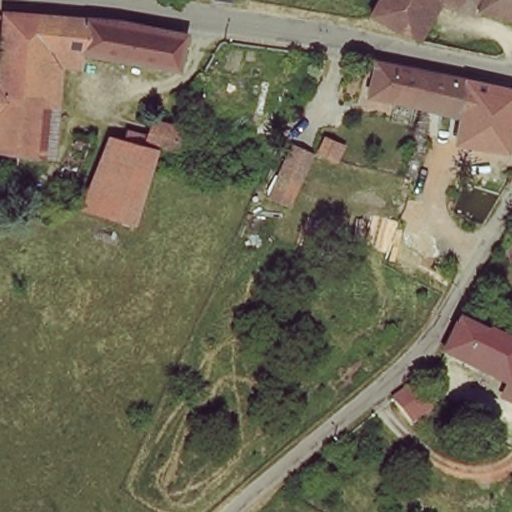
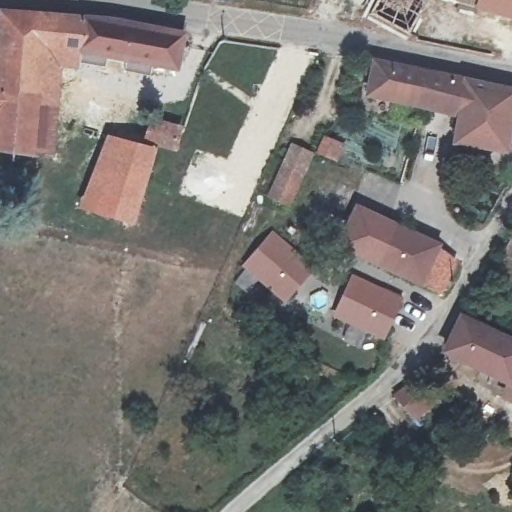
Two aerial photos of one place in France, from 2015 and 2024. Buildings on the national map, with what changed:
unchanged [(374,11),(380,0),(431,0),(413,32),(374,11)]
unchanged [(477,0),(512,0),(512,11),(477,0)]
unchanged [(50,55),(38,148),(0,145),(0,64),(3,20),(180,30),(177,63),(50,55)]
unchanged [(376,58),(402,64),(512,89),(512,131),(462,119),(463,114),(395,98),(377,94),(368,91),(370,81),(376,58)]
unchanged [(175,127),(172,142),(144,136),(147,121),(175,127)]
unchanged [(142,147),(130,215),(97,209),(112,140),(142,147)]
unchanged [(291,210),(262,196),(288,141),(315,154),(291,210)]
new [(366,261),(385,218),(442,244),(421,286),(366,261)]
new [(242,265),(272,229),(315,268),(284,303),(242,265)]
new [(332,315),(352,274),(402,299),(383,340),(332,315)]
unchanged [(445,348),(462,312),(512,337),(512,381),(445,348)]
unchanged [(438,392),(421,407),(403,388),(421,374),(438,392)]

